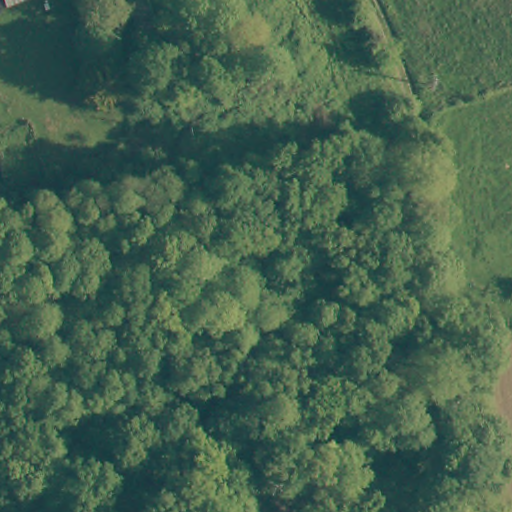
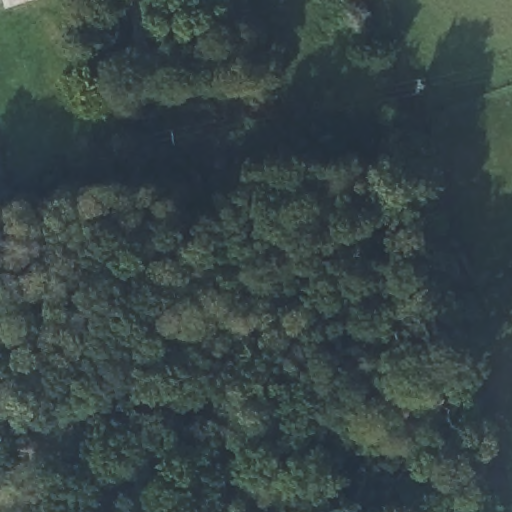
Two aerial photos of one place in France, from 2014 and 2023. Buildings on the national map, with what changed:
unchanged [(149,11),(161,42),(158,47),(143,50),(132,17),(149,11)]

